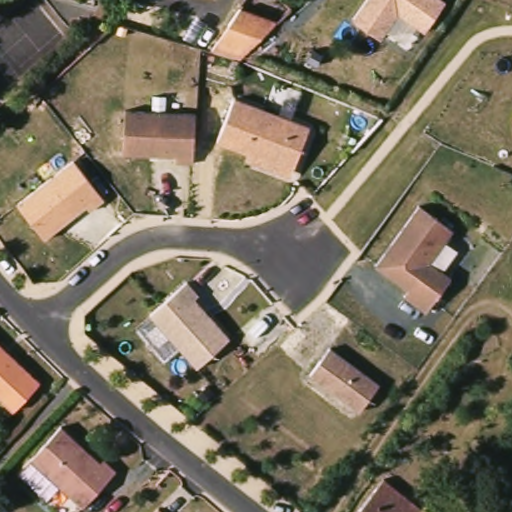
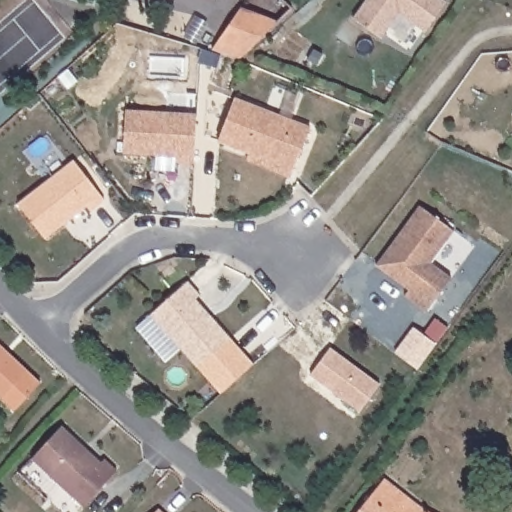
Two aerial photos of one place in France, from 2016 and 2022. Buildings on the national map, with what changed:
unchanged [(445,0),(447,1),(426,33),(399,14),(379,39),(352,19),(364,0),(445,0)]
unchanged [(214,48),(239,9),(278,20),(254,61),(214,48)]
unchanged [(231,99),(307,129),(289,171),(214,141),(231,99)]
unchanged [(119,154),(121,111),(192,114),(189,164),(172,164),(173,157),(156,156),(148,156),(119,154)]
unchanged [(47,240),(19,204),(75,161),(105,200),(91,212),(88,207),(75,217),(69,223),(47,240)]
unchanged [(416,202),(449,226),(427,258),(448,274),(423,308),(401,292),(406,285),(373,261),(416,202)]
unchanged [(196,295),(192,300),(203,312),(208,318),(227,339),(195,368),(148,314),(184,283),(196,295)]
unchanged [(322,344),(371,380),(352,407),(302,371),(322,344)]
unchanged [(0,395),(0,345),(39,380),(14,408),(0,395)]
unchanged [(104,459),(116,471),(84,507),(32,461),(61,431),(98,465),(104,459)]
unchanged [(486,458),(512,473),(512,492),(478,471),(486,458)]
unchanged [(386,484),(422,512),(363,512),(386,484)]
unchanged [(433,501),(447,512),(424,512),(433,501)]
unchanged [(159,509),(162,512),(155,512),(159,509)]

